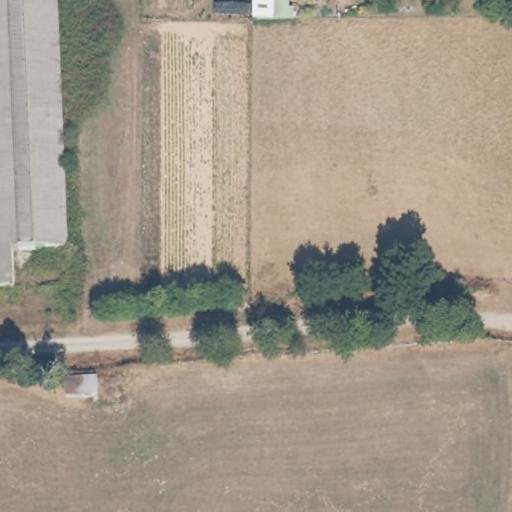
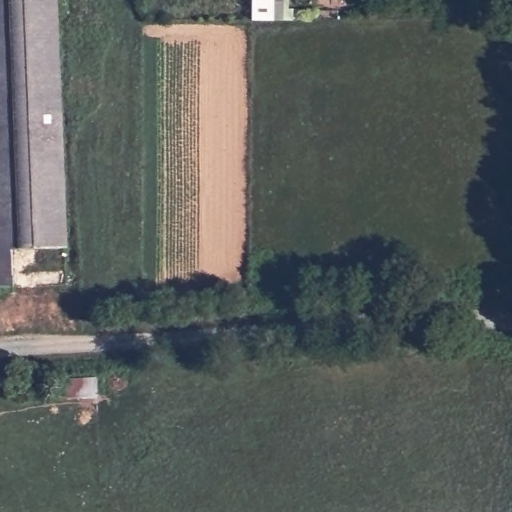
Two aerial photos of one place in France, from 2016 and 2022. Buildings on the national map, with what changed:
unchanged [(56,0),(67,281),(0,284),(0,0),(56,0)]
unchanged [(252,0),(272,0),(271,21),(252,21),(252,0)]

